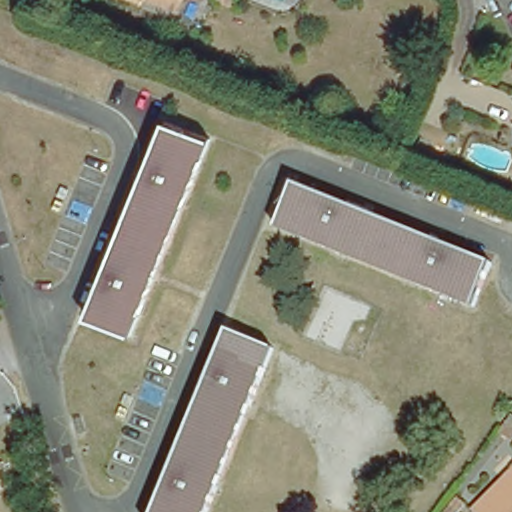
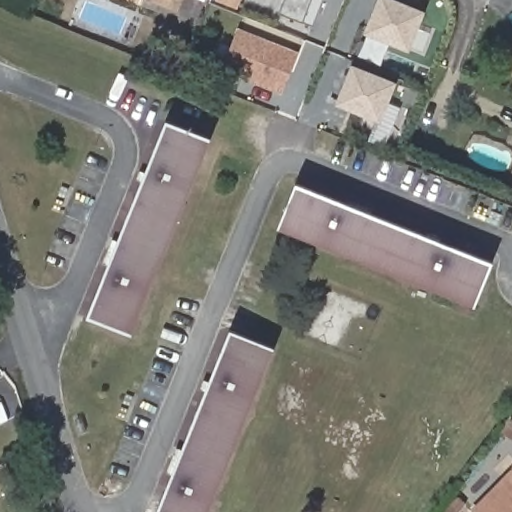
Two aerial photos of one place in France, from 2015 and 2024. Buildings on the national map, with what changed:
unchanged [(155,0),(184,0),(180,10),(155,0)]
unchanged [(240,0),(237,6),(220,0),(240,0)]
new [(278,13),(284,0),(322,0),(312,26),(278,13)]
new [(377,0),(396,0),(424,11),(409,50),(406,48),(363,33),(377,0)]
new [(225,71),(230,59),(225,57),(237,27),(299,53),(282,95),(225,71)]
new [(335,104),(351,64),(395,81),(379,118),(335,104)]
unchanged [(93,306),(152,156),(167,120),(210,136),(132,332),(90,315),(93,306)]
unchanged [(473,305),(280,227),(297,184),(487,261),(491,262),(486,273),(473,305)]
unchanged [(220,335),(221,335),(263,352),(198,512),(148,512),(220,335)]
unchanged [(0,427),(1,428),(0,429),(0,427)]
unchanged [(512,471),(512,512),(481,512),(477,507),(512,471)]

